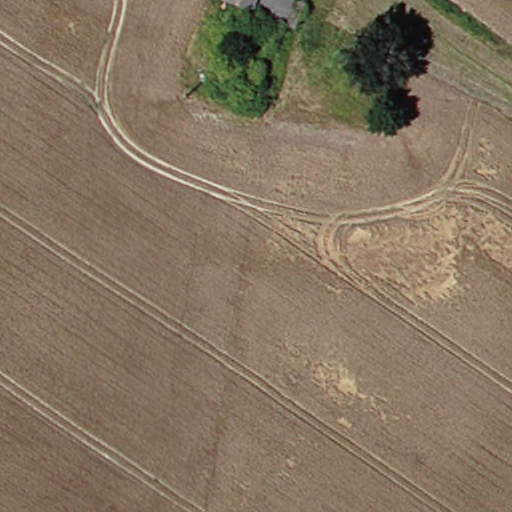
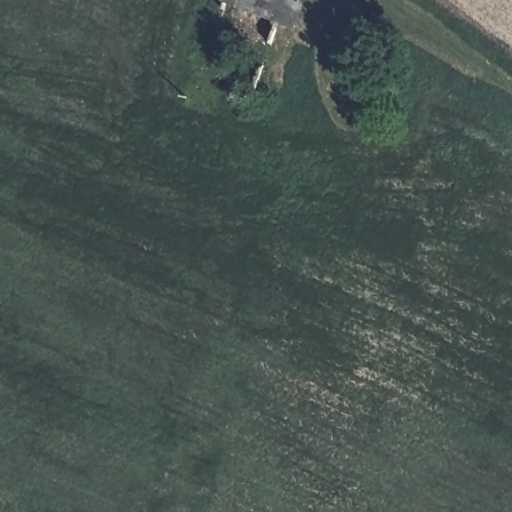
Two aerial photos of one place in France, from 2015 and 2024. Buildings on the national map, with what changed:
unchanged [(289,27),(214,1),(214,0),(289,0),(298,3),(289,27)]

